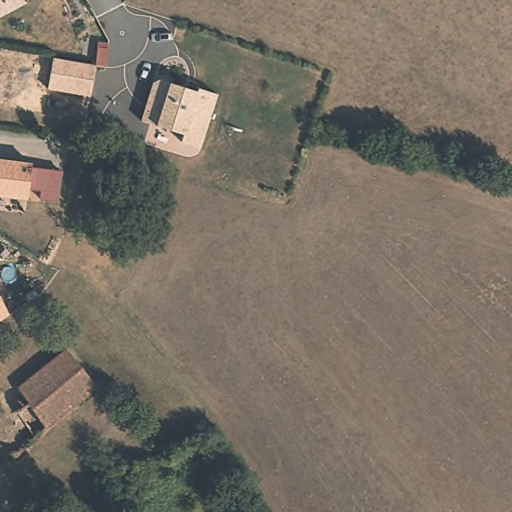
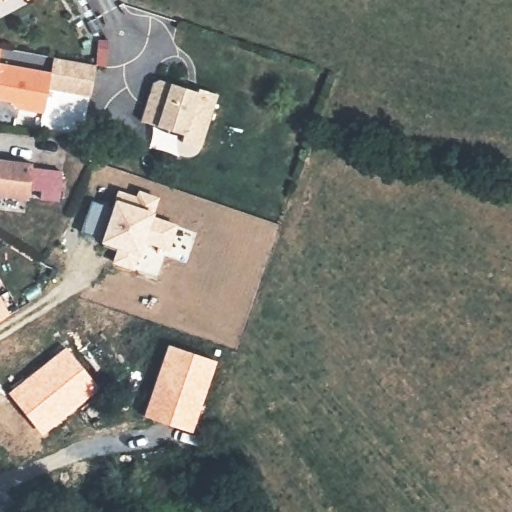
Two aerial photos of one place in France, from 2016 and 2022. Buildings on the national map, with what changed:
new [(0,51),(0,47),(1,47),(0,51)]
unchanged [(52,57),(95,64),(95,65),(89,96),(47,89),(52,57)]
new [(47,89),(44,113),(15,109),(10,103),(0,102),(0,63),(50,71),(47,89)]
unchanged [(217,90),(200,142),(181,136),(183,129),(141,115),(153,77),(160,74),(187,83),(197,86),(198,83),(217,90)]
unchanged [(32,169),(62,172),(59,202),(40,200),(41,190),(30,187),(29,201),(0,198),(0,159),(32,162),(32,169)]
new [(115,247),(100,242),(100,239),(80,232),(92,197),(112,204),(114,200),(117,190),(136,195),(138,190),(160,197),(153,212),(155,212),(153,217),(177,224),(168,252),(142,245),(140,255),(137,254),(134,271),(111,265),(115,247)]
unchanged [(0,322),(0,300),(10,317),(0,322)]
unchanged [(32,397),(19,382),(67,345),(99,382),(51,424),(32,397)]
new [(167,345),(217,362),(192,432),(142,417),(167,345)]

